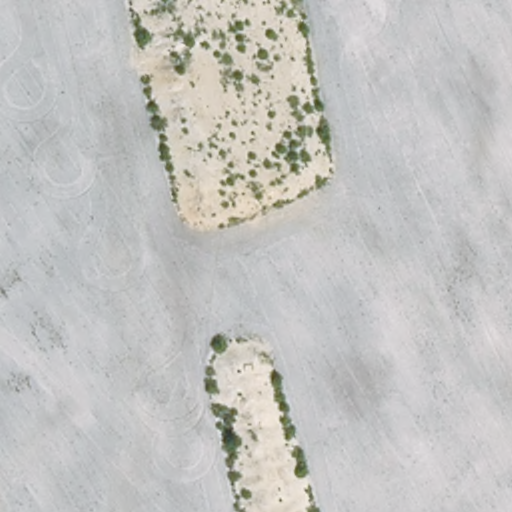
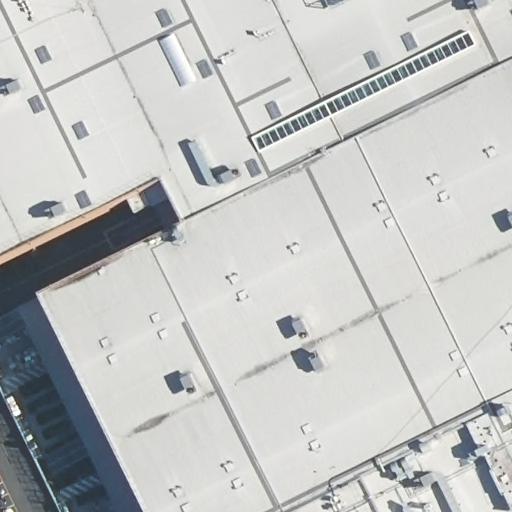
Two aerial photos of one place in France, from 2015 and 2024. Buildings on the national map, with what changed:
new [(174,233),(152,189),(0,266),(0,0),(512,0),(512,512),(125,512),(23,309),(174,233)]

